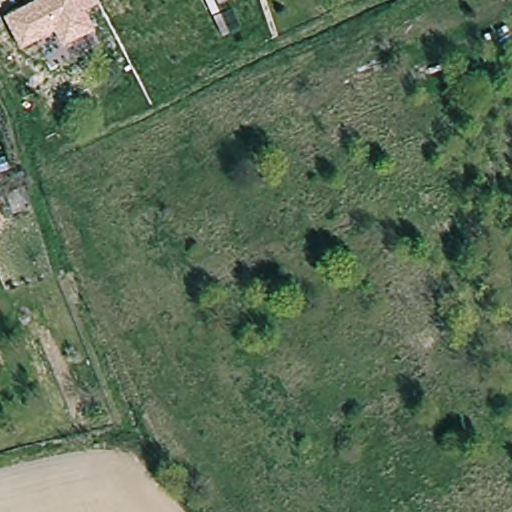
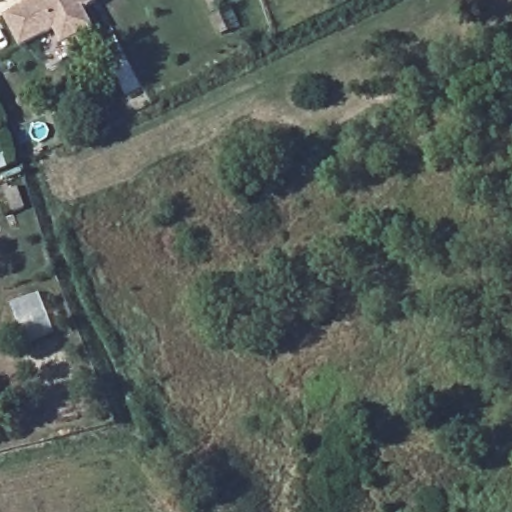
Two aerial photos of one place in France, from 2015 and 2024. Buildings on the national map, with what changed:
unchanged [(4,16),(36,0),(97,0),(98,2),(86,9),(97,30),(62,49),(54,33),(20,49),(4,16)]
unchanged [(28,205),(14,210),(7,190),(22,185),(28,205)]

